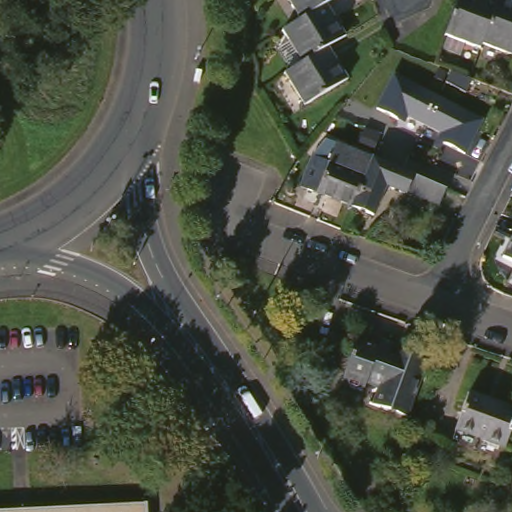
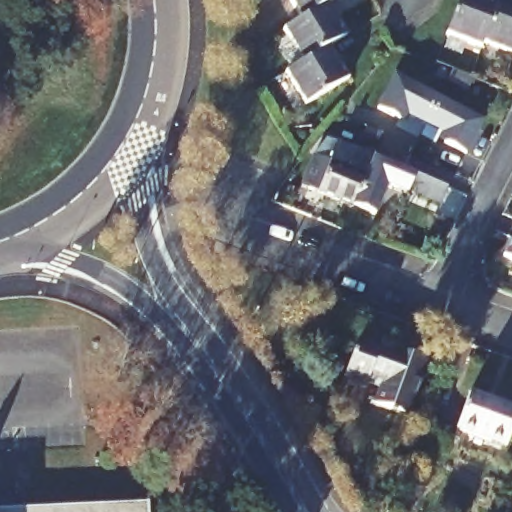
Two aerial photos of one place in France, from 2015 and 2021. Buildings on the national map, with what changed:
unchanged [(277,0),(333,0),(320,9),(293,25),(277,0)]
unchanged [(492,42),(456,29),(467,0),(508,0),(494,37),(492,42)]
unchanged [(494,37),(508,0),(512,0),(512,44),(494,37)]
unchanged [(275,37),(293,25),(320,9),(338,40),(320,51),(294,67),(275,37)]
unchanged [(294,67),(320,51),(338,82),(297,108),(278,78),(294,67)]
unchanged [(467,154),(438,140),(442,133),(408,117),(405,124),(377,110),(398,69),(489,110),(467,154)]
unchanged [(369,204),(316,183),(330,149),(340,136),(388,155),(369,204)]
unchanged [(423,168),(422,170),(456,183),(450,200),(416,185),(415,186),(400,180),(388,210),(369,204),(388,155),(423,168)]
unchanged [(357,373),(372,337),(393,345),(392,348),(405,352),(407,348),(440,360),(418,413),(388,402),(396,385),(381,378),(380,382),(357,373)]
unchanged [(481,392),(512,402),(512,443),(470,430),(481,392)]
unchanged [(155,512),(0,512),(0,506),(155,500),(155,512)]

